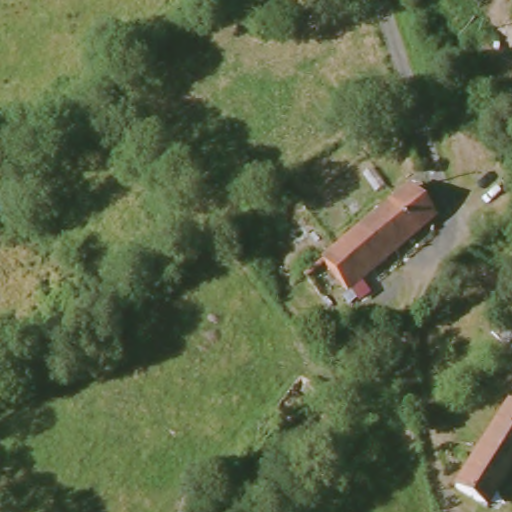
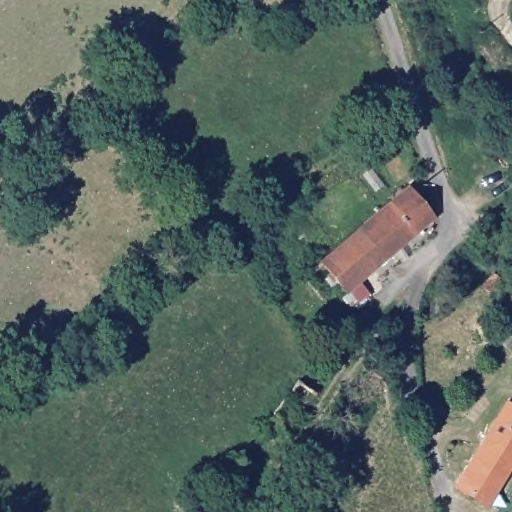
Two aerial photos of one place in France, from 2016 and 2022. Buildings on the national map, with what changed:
unchanged [(347,291),(323,259),(408,190),(434,223),(347,291)]
unchanged [(512,412),(512,479),(493,512),(486,512),(461,497),(510,411),(512,412)]

